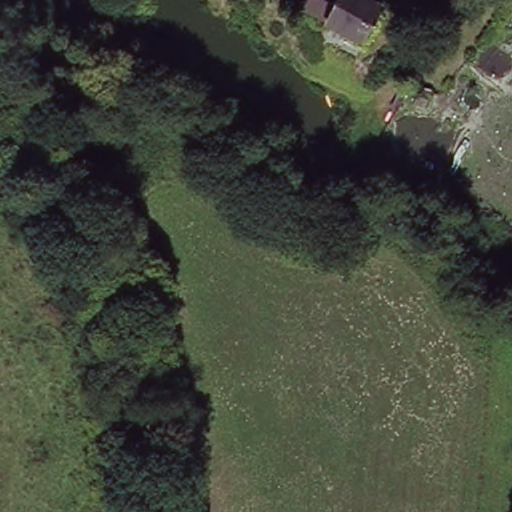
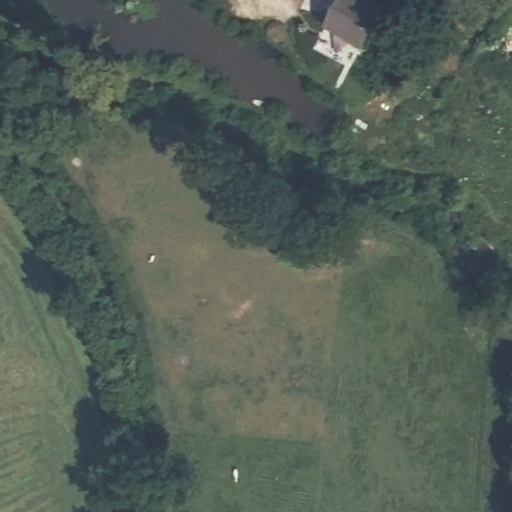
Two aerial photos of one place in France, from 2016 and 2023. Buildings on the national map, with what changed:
unchanged [(323,0),(329,3),(331,0),(367,0),(382,7),(365,43),(300,13),(306,0),(323,0)]

